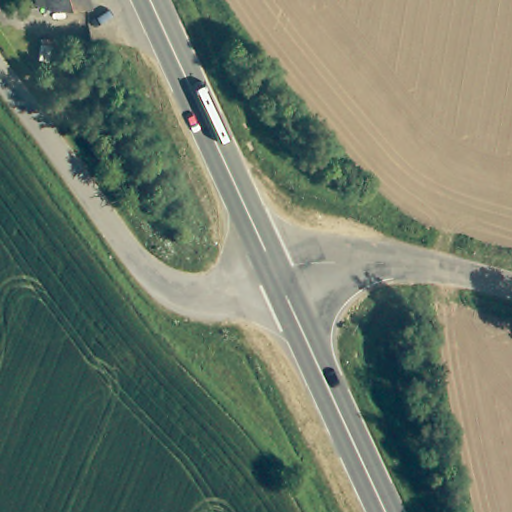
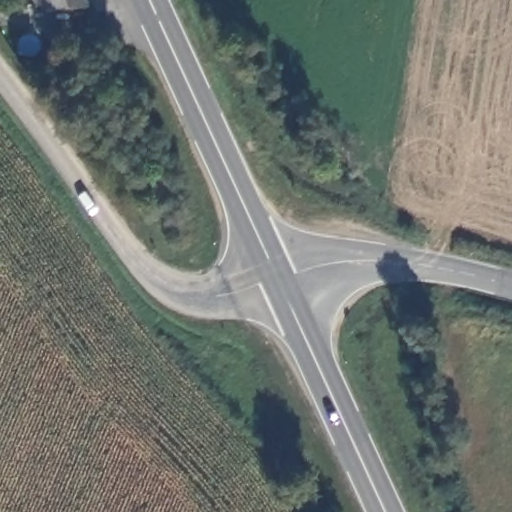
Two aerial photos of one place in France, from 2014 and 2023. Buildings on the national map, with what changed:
unchanged [(89,0),(91,7),(50,7),(47,0),(89,0)]

